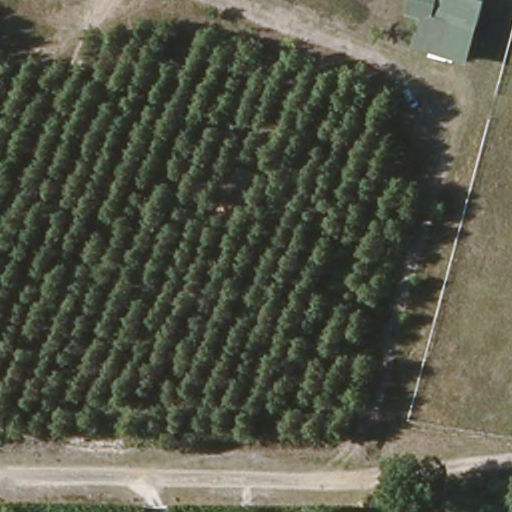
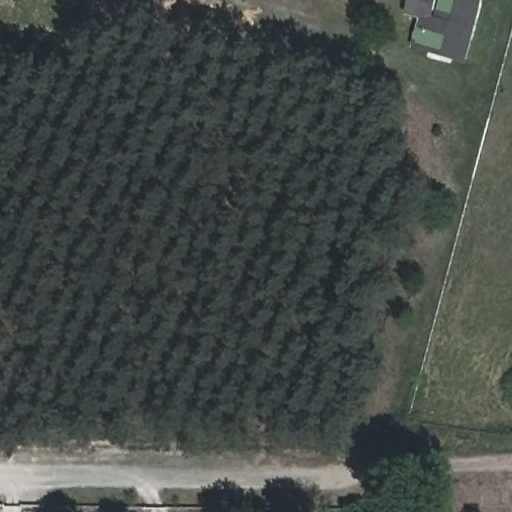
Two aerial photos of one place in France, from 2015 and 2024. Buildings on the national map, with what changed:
unchanged [(437,20),(413,14),(417,0),(442,0),(437,20)]
unchanged [(435,51),(448,0),(480,0),(486,2),(479,32),(472,61),(435,51)]

